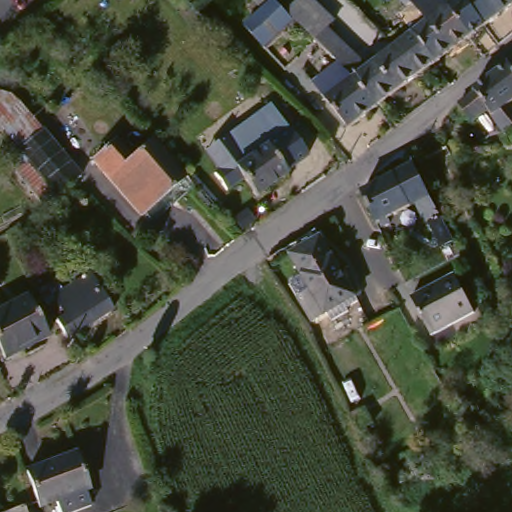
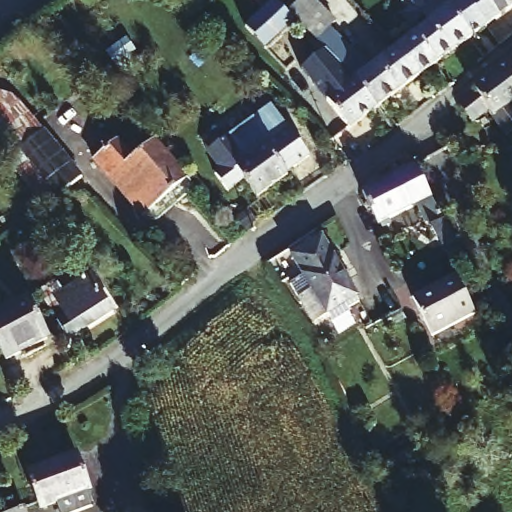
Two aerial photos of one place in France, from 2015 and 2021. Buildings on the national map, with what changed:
unchanged [(303,24),(274,51),(252,29),(272,10),(262,0),(281,0),(303,24)]
unchanged [(387,108),(364,82),(363,81),(348,66),(337,56),(325,43),(295,14),(308,0),(320,0),(343,23),(336,30),(377,70),(422,35),(428,42),(443,64),(387,108)]
unchanged [(443,64),(428,42),(422,35),(417,28),(414,24),(408,16),(413,12),(416,10),(407,0),(512,0),(512,13),(493,27),(480,37),(449,60),(443,64)]
unchanged [(491,110),(475,122),(462,105),(478,93),(477,92),(512,65),(512,135),(511,136),(497,118),(491,110)]
unchanged [(363,81),(364,82),(387,108),(357,131),(322,86),(348,66),(363,81)]
unchanged [(5,92),(21,97),(52,133),(28,153),(22,146),(0,119),(0,96),(5,92)]
unchanged [(276,142),(263,151),(282,178),(251,200),(217,152),(258,122),(276,142)]
unchanged [(52,133),(90,180),(67,199),(28,153),(52,133)]
unchanged [(151,222),(144,222),(139,216),(136,219),(87,163),(110,143),(126,161),(147,142),(181,180),(189,188),(151,222)]
unchanged [(28,153),(67,199),(67,200),(56,210),(11,156),(22,146),(28,153)]
unchanged [(380,230),(378,225),(376,226),(360,195),(391,180),(413,168),(425,193),(438,219),(423,226),(413,207),(385,222),(387,226),(380,230)]
unchanged [(346,311),(347,314),(331,324),(326,316),(312,324),(298,301),(290,287),(302,279),(286,251),(315,232),(355,299),(357,304),(346,311)]
unchanged [(47,295),(64,284),(72,296),(98,278),(122,314),(77,344),(55,307),(47,295)]
unchanged [(454,278),(474,316),(431,339),(411,301),(454,278)]
unchanged [(5,363),(0,353),(0,314),(27,301),(47,341),(5,363)]
unchanged [(91,486),(96,499),(66,511),(61,497),(45,503),(31,466),(81,448),(94,484),(91,486)]
unchanged [(410,467),(405,458),(417,450),(423,458),(410,467)]
unchanged [(31,512),(1,512),(27,503),(31,512)]

